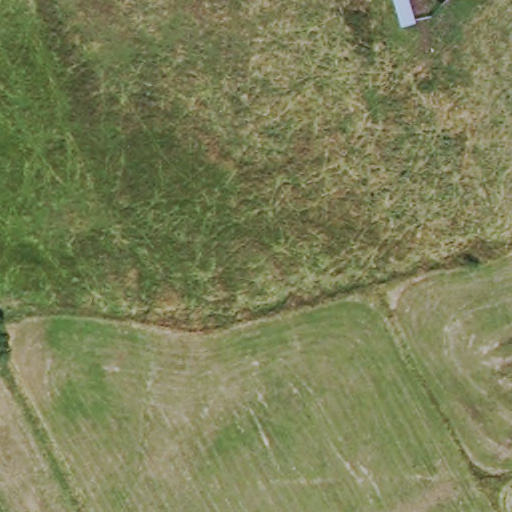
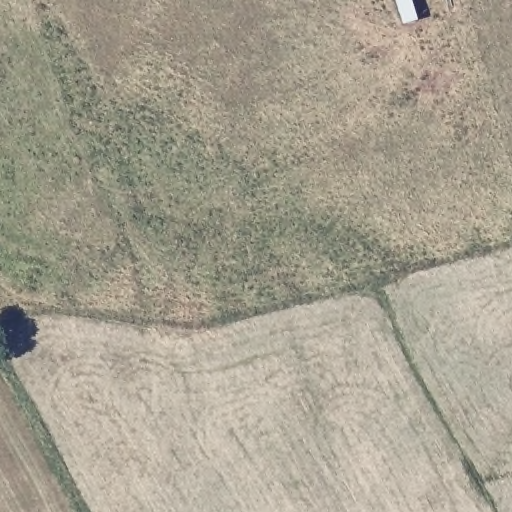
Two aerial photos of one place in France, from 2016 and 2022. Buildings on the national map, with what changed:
unchanged [(417,23),(400,27),(392,0),(410,0),(417,23)]

